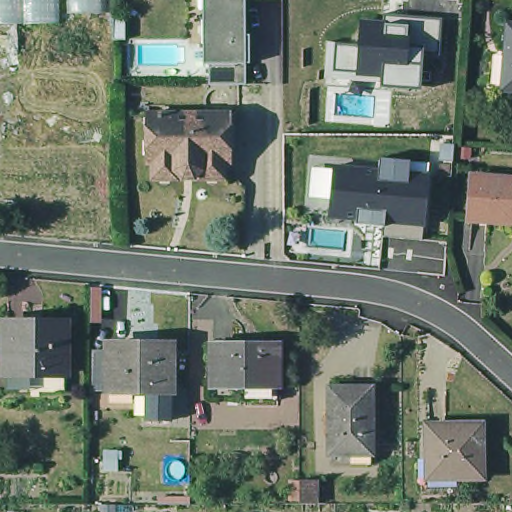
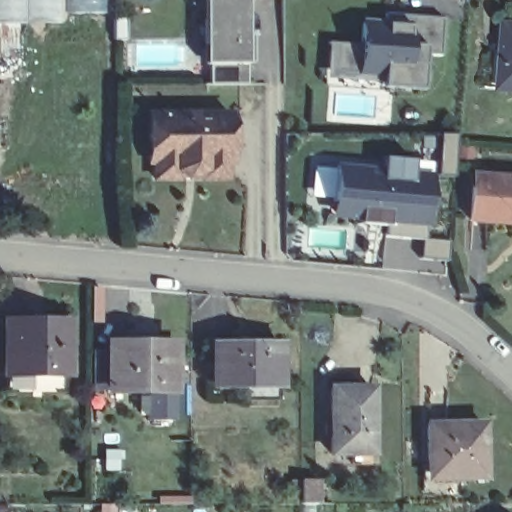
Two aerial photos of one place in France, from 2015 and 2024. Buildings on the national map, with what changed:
unchanged [(58,15),(57,27),(0,26),(0,0),(102,0),(102,16),(58,15)]
unchanged [(242,0),(242,85),(205,86),(204,0),(242,0)]
unchanged [(383,22),(383,15),(442,20),(440,55),(423,54),(420,90),(382,87),(382,81),(325,78),(327,44),(358,47),(360,20),(383,22)]
unchanged [(507,56),(503,56),(505,29),(512,29),(512,95),(504,95),(507,56)]
unchanged [(234,159),(229,159),(230,175),(206,175),(206,169),(182,169),(182,175),(160,175),(159,159),(154,160),(154,131),(153,111),(167,111),(234,111),(234,159)]
unchanged [(332,170),(332,165),(380,170),(380,158),(410,161),(431,164),(430,175),(424,225),(422,239),(382,235),(382,227),(356,225),(356,221),(327,219),(330,199),(309,197),(312,168),(332,170)]
unchanged [(473,175),(512,178),(512,223),(470,220),(473,175)]
unchanged [(2,317),(63,318),(62,369),(2,368),(2,317)]
unchanged [(242,397),(242,383),(209,382),(210,341),(275,341),(274,383),(274,397),(242,397)]
unchanged [(148,421),(149,390),(109,390),(109,382),(93,382),(93,352),(109,352),(109,345),(147,346),(147,345),(174,346),(173,391),(171,391),(170,421),(148,421)]
unchanged [(62,369),(62,386),(2,385),(2,368),(62,369)]
unchanged [(348,465),(348,454),(326,454),(326,388),(368,388),(368,455),(367,455),(367,465),(348,465)]
unchanged [(419,477),(425,477),(423,430),(479,428),(480,482),(455,483),(419,484),(419,477)]
unchanged [(297,504),(297,480),(301,480),(318,480),(318,504),(301,504),(297,504)]

